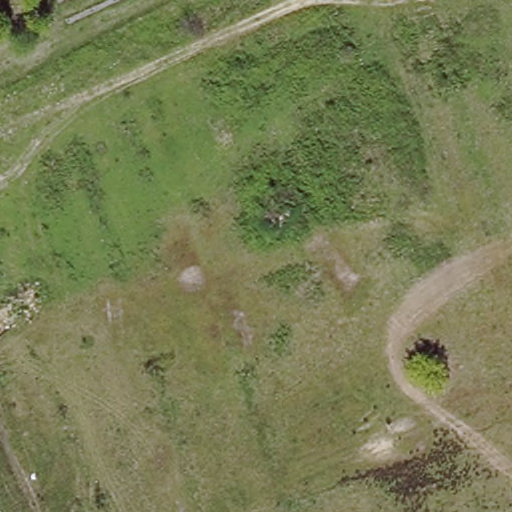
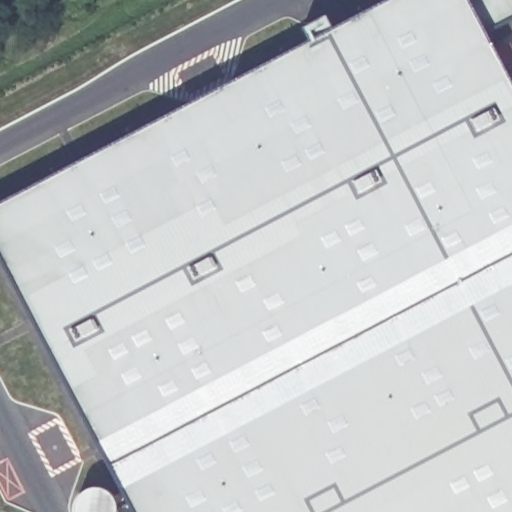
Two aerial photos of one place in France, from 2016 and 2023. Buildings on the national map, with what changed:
new [(0,258),(0,205),(387,0),(512,0),(512,22),(486,35),(512,85),(512,512),(133,512),(0,258)]

